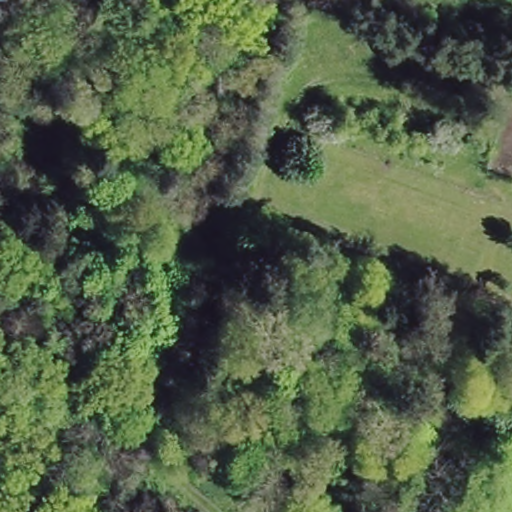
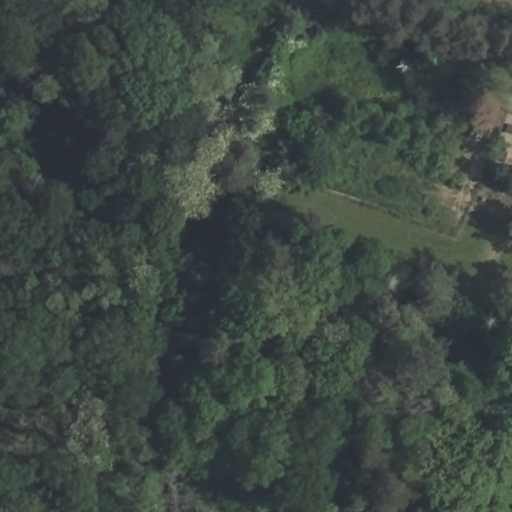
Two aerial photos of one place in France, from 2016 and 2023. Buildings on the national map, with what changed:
[]

